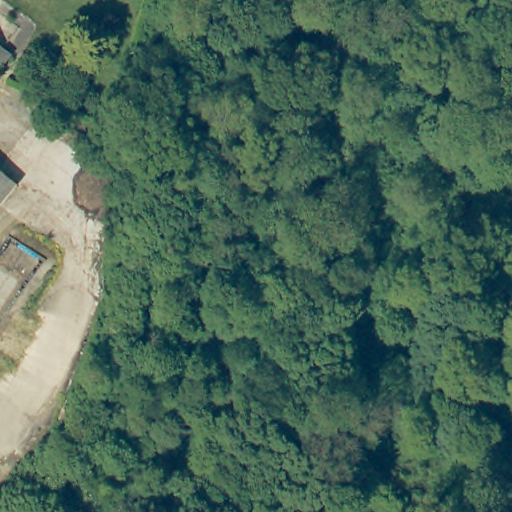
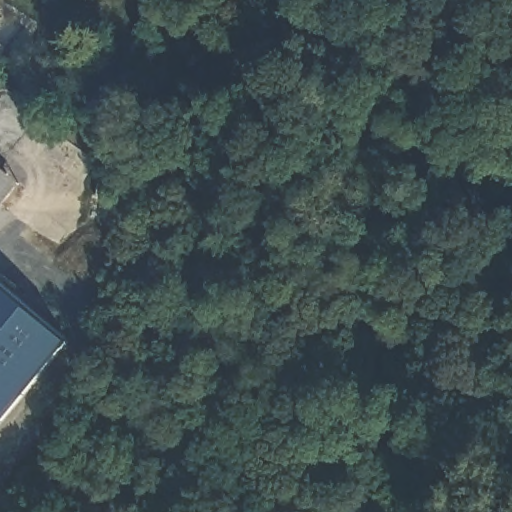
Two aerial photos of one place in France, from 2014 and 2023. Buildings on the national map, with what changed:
unchanged [(6,40),(16,47),(0,67),(0,36),(6,40)]
unchanged [(3,71),(0,75),(0,69),(3,71)]
unchanged [(25,181),(0,210),(0,160),(25,181)]
new [(72,342),(0,429),(0,284),(72,342)]

